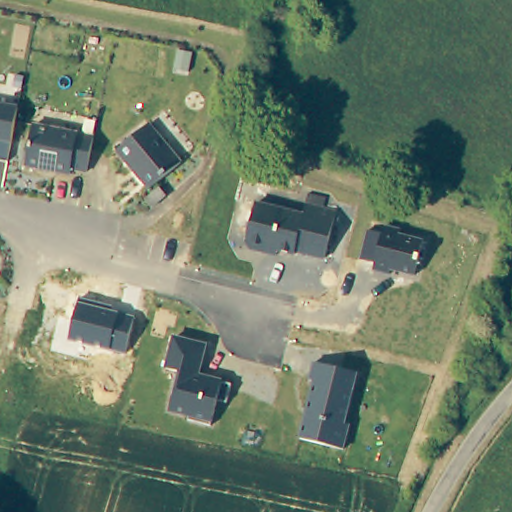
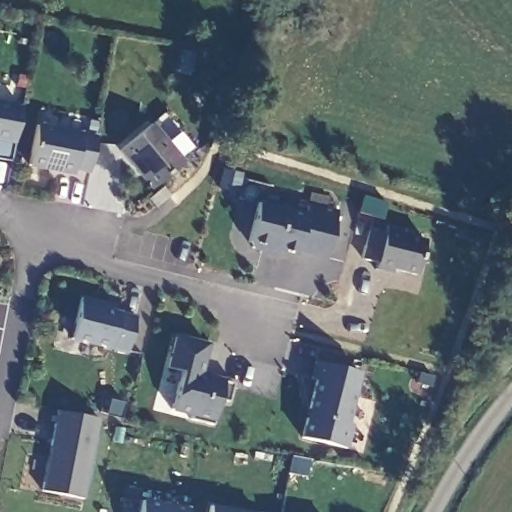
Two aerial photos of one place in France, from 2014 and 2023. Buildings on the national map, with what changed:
unchanged [(0,142),(0,104),(14,107),(6,144),(0,142)]
unchanged [(113,150),(145,124),(177,163),(145,190),(113,150)]
unchanged [(83,172),(67,170),(66,175),(21,166),(29,125),(89,137),(83,172)]
unchanged [(155,187),(163,195),(148,207),(141,199),(155,187)]
unchanged [(303,214),(305,203),(336,210),(324,259),(294,252),(294,257),(278,253),(277,256),(249,250),(245,243),(256,202),(303,214)]
unchanged [(381,233),(384,225),(399,229),(398,233),(423,240),(414,275),(391,270),(389,275),(372,271),(374,263),(360,260),(367,229),(381,233)]
unchanged [(111,305),(110,310),(119,312),(134,316),(126,352),(109,349),(69,340),(79,296),(111,305)]
unchanged [(207,343),(199,373),(221,378),(219,382),(230,385),(225,402),(216,400),(211,421),(168,412),(171,398),(178,371),(164,368),(172,335),(207,343)]
unchanged [(358,373),(344,423),(351,425),(344,449),(299,438),(313,381),(308,380),(312,361),(358,373)]
new [(84,497),(38,490),(54,409),(98,418),(84,497)]
new [(188,512),(137,512),(139,500),(188,510),(188,512)]
new [(209,503),(249,512),(208,512),(209,503)]

